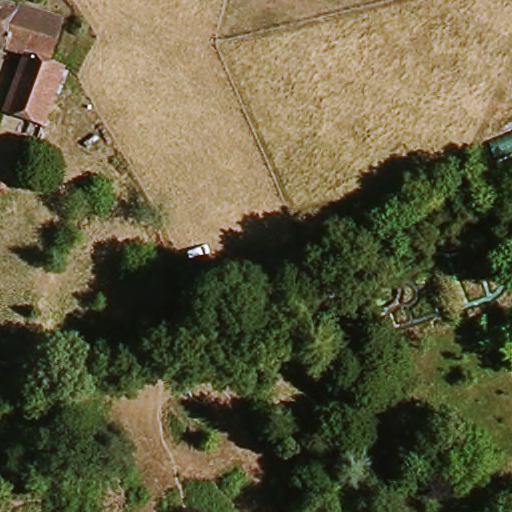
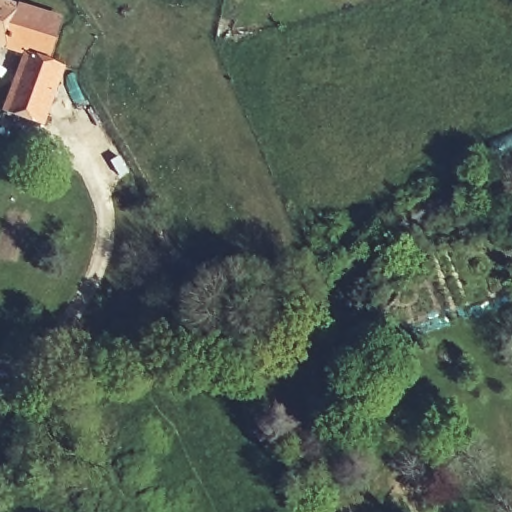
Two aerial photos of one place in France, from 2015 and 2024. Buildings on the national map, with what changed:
unchanged [(0,48),(0,4),(65,21),(52,58),(69,64),(47,122),(10,107),(26,57),(0,48)]

